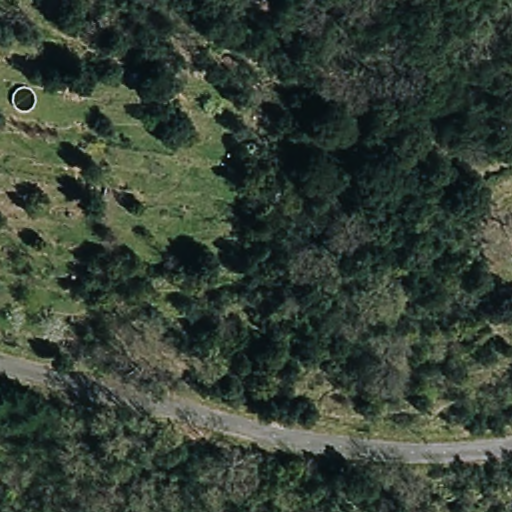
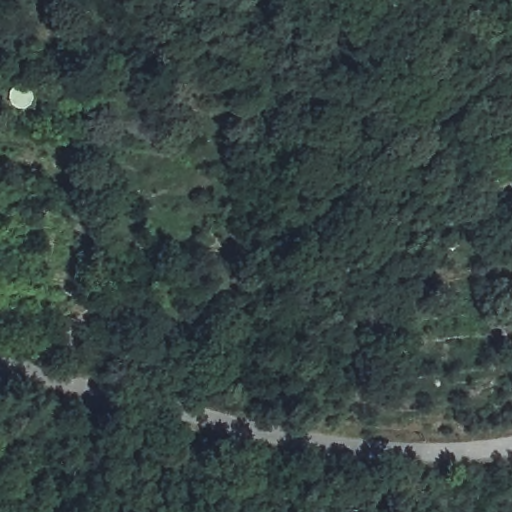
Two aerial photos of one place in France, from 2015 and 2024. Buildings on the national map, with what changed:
[]

